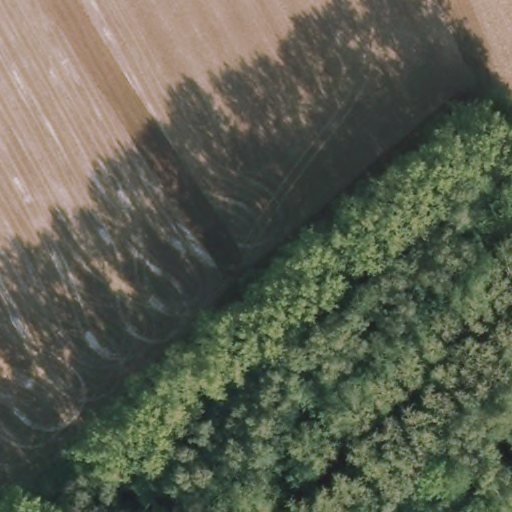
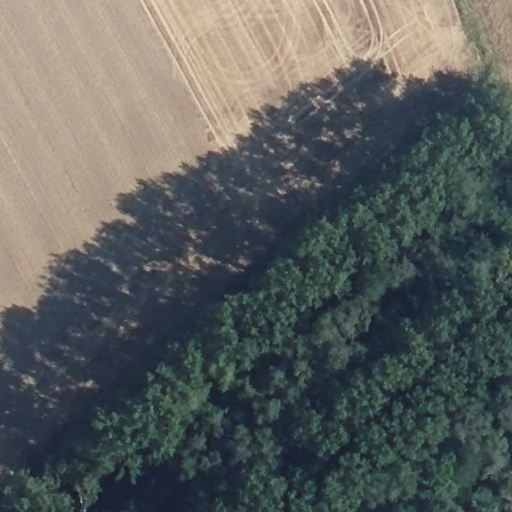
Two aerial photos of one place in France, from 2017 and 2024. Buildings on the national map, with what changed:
unchanged [(375,343),(357,359),(347,348),(366,332),(375,343)]

